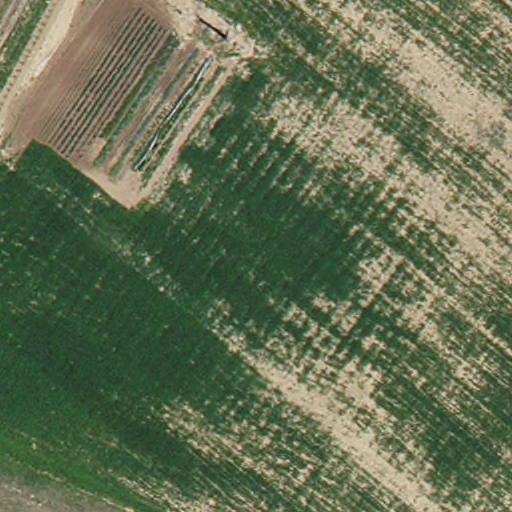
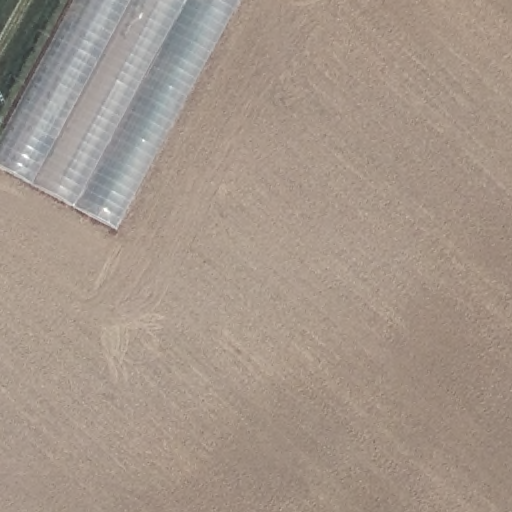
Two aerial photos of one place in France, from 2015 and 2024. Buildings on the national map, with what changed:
new [(114,230),(0,170),(0,138),(73,0),(236,0),(114,230)]

